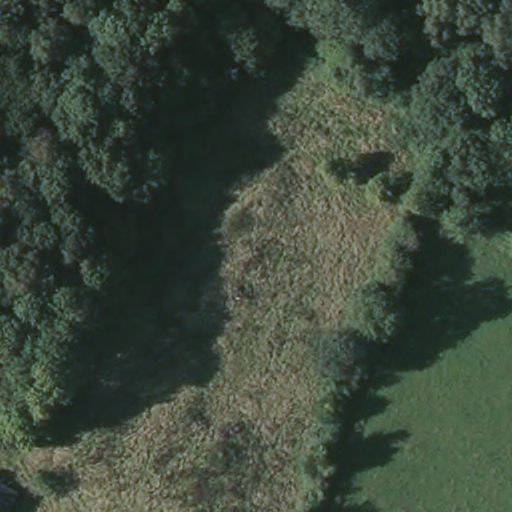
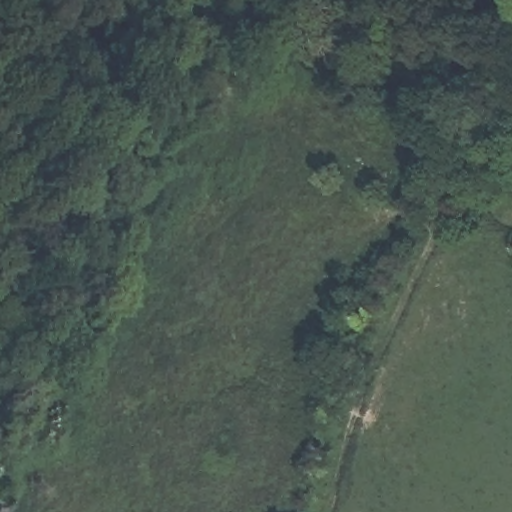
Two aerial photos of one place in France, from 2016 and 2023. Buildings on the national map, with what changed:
unchanged [(16,489),(2,512),(0,512),(0,479),(16,489)]

